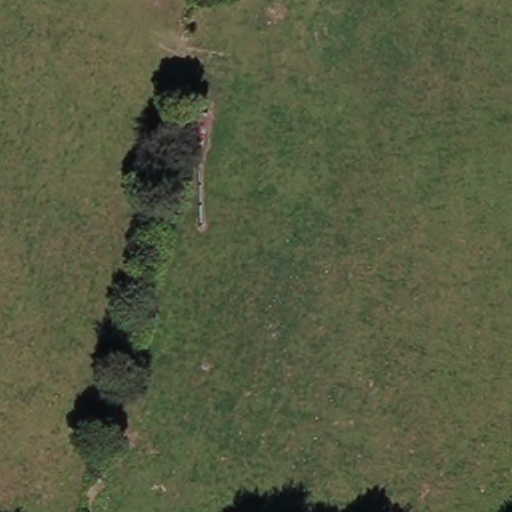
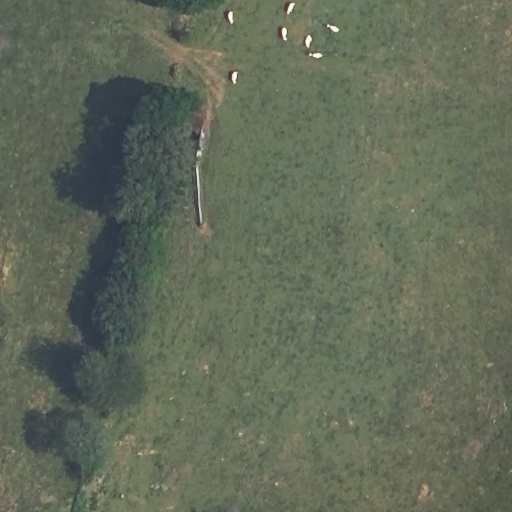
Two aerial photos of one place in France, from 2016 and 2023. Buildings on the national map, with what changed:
unchanged [(180,166),(187,108),(211,112),(202,169),(180,166)]

